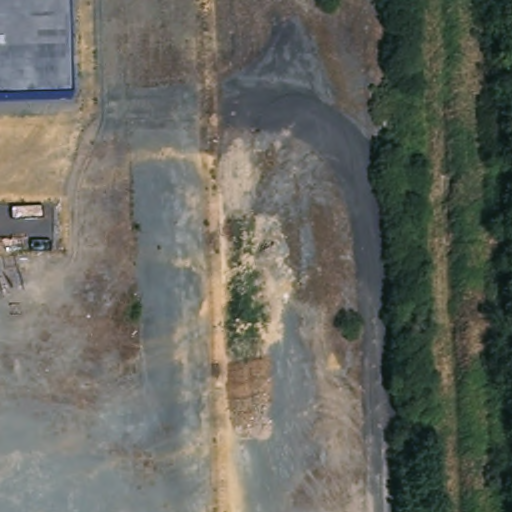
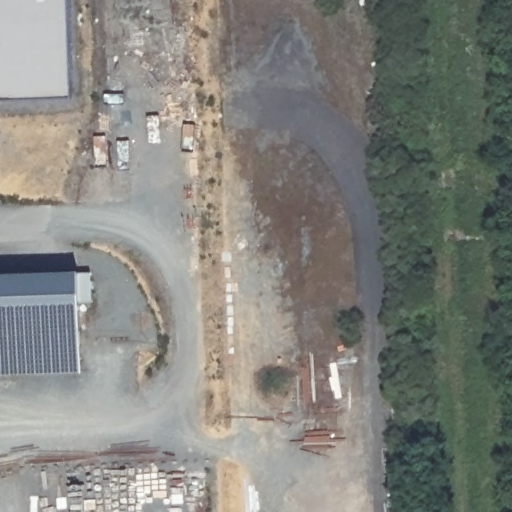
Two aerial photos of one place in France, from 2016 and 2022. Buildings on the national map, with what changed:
unchanged [(66,0),(70,98),(0,99),(0,0),(66,0)]
new [(82,277),(85,358),(0,360),(0,280),(82,277)]
new [(85,358),(85,357),(85,378),(0,380),(0,360),(85,358)]

